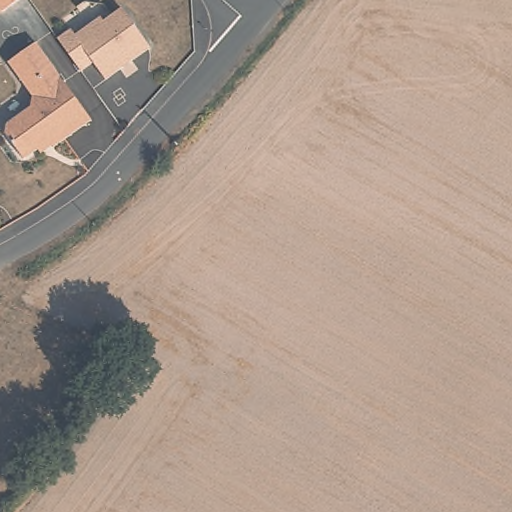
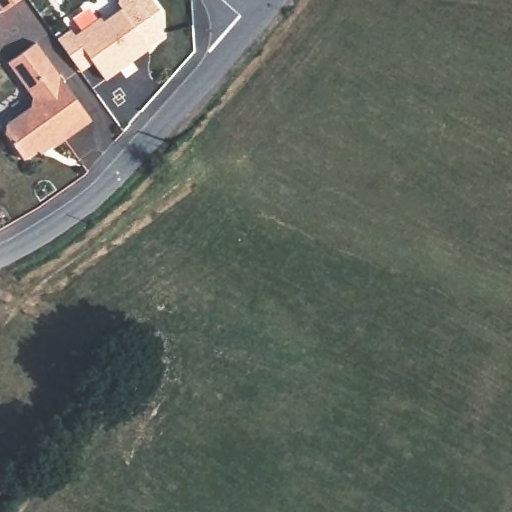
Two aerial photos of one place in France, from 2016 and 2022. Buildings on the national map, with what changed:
unchanged [(108,81),(95,64),(84,72),(60,39),(73,30),(77,36),(103,18),(106,23),(125,9),(152,49),(131,64),(126,68),(108,81)]
unchanged [(40,150),(26,160),(7,134),(9,126),(34,109),(35,97),(10,63),(38,43),(94,120),(55,149),(54,146),(42,154),(40,150)]

